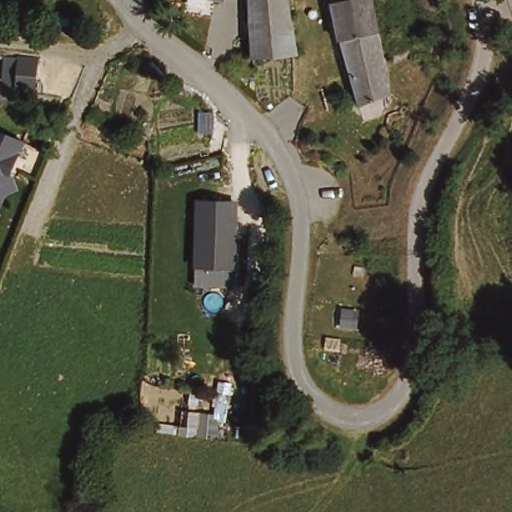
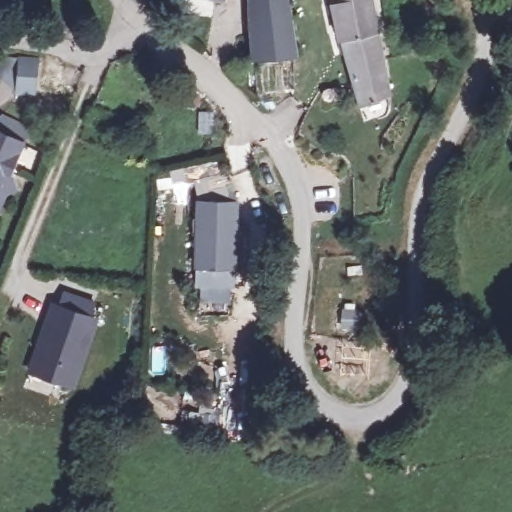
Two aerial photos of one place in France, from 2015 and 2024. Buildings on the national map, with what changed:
unchanged [(225,2),(208,0),(225,0),(225,2)]
unchanged [(259,62),(249,63),(246,0),(258,0),(259,62)]
unchanged [(258,0),(290,0),(301,56),(259,62),(258,0)]
unchanged [(341,18),(337,0),(377,0),(391,61),(400,99),(374,108),(369,110),(341,18)]
unchanged [(18,98),(1,84),(3,64),(41,65),(38,100),(18,98)]
unchanged [(24,144),(9,175),(13,177),(18,189),(6,193),(0,208),(0,132),(4,134),(24,144)]
unchanged [(240,202),(238,267),(198,267),(198,201),(240,202)]
new [(91,317),(98,320),(73,389),(26,372),(50,301),(58,304),(62,290),(96,303),(91,317)]
new [(201,397),(223,399),(216,440),(179,435),(158,432),(157,422),(188,427),(189,411),(211,413),(211,409),(198,408),(201,397)]

